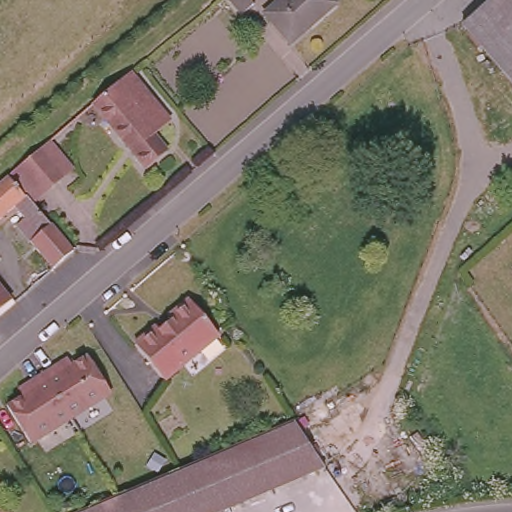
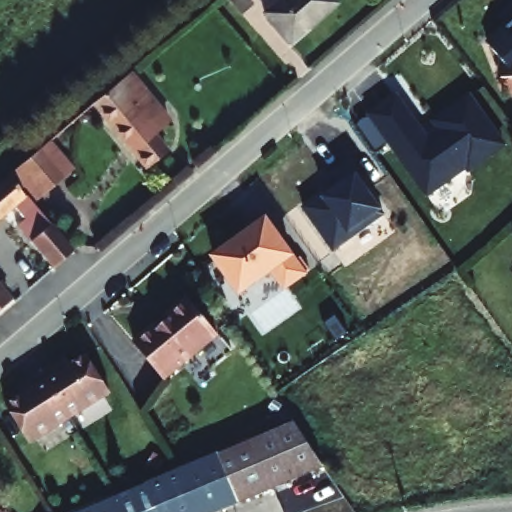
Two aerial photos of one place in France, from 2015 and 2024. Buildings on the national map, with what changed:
unchanged [(255,3),(243,13),(231,0),(252,0),(255,3)]
unchanged [(291,36),(265,7),(274,0),(334,0),(291,36)]
demolished [(463,24),(490,0),(512,0),(512,80),(463,24)]
new [(502,59),(486,42),(505,27),(508,31),(512,27),(512,80),(499,79),(502,59)]
unchanged [(163,121),(146,135),(159,151),(138,168),(83,103),(119,72),(163,121)]
new [(398,92),(429,135),(437,129),(434,122),(472,93),(509,146),(469,170),(428,199),(368,114),(398,92)]
unchanged [(63,176),(33,202),(7,173),(38,147),(63,176)]
new [(322,193),(324,198),(359,174),(384,211),(386,215),(334,252),(302,208),(322,193)]
unchanged [(54,269),(18,228),(25,221),(16,210),(0,224),(0,185),(8,178),(74,252),(54,269)]
new [(306,269),(286,284),(273,267),(241,290),(214,254),(242,234),(243,236),(248,232),(248,230),(266,216),(306,269)]
unchanged [(0,314),(0,279),(18,300),(0,314)]
unchanged [(216,333),(161,377),(131,341),(153,324),(156,328),(169,317),(166,314),(186,297),(216,333)]
unchanged [(39,370),(52,361),(58,369),(84,352),(109,388),(69,414),(39,370)]
unchanged [(30,439),(6,403),(33,386),(28,378),(39,370),(69,414),(30,439)]
unchanged [(178,469),(296,421),(324,462),(328,468),(219,512),(75,512),(118,494),(178,469)]
unchanged [(0,512),(0,511),(1,512),(0,512)]

